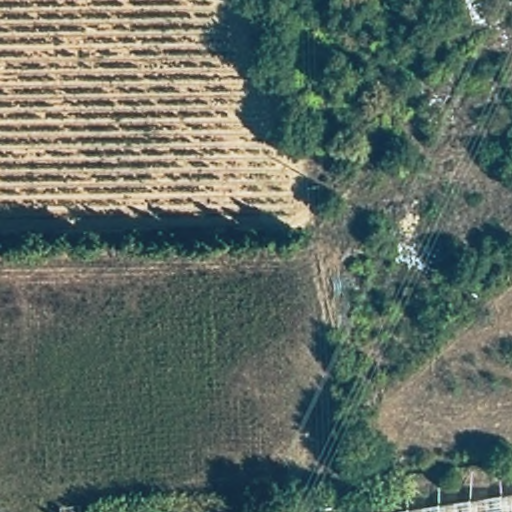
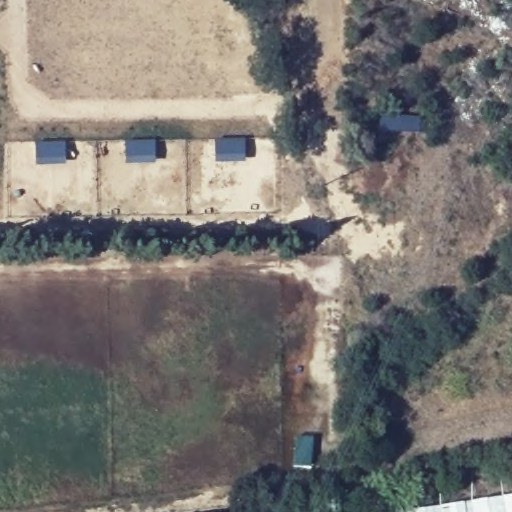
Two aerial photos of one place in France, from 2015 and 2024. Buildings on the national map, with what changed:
unchanged [(512,512),(395,512),(512,497),(512,512)]

